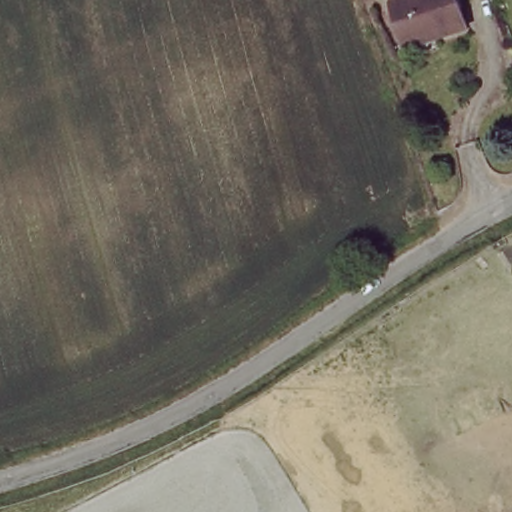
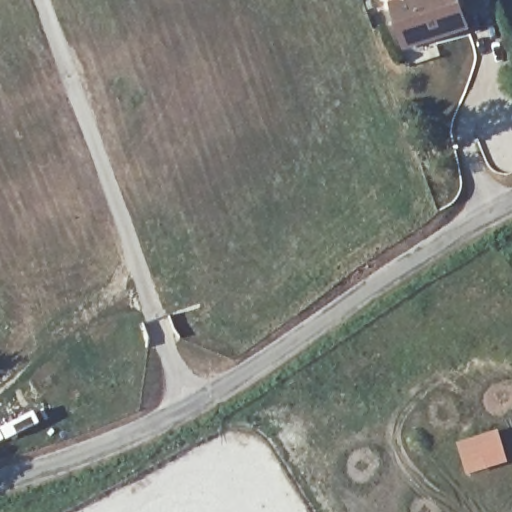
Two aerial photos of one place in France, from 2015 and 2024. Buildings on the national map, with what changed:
unchanged [(439,46),(437,40),(412,45),(399,0),(426,0),(465,0),(474,34),(439,46)]
new [(498,430),(510,464),(469,478),(458,444),(498,430)]

